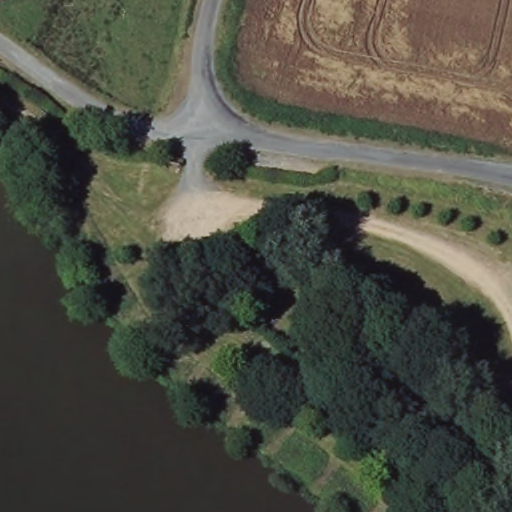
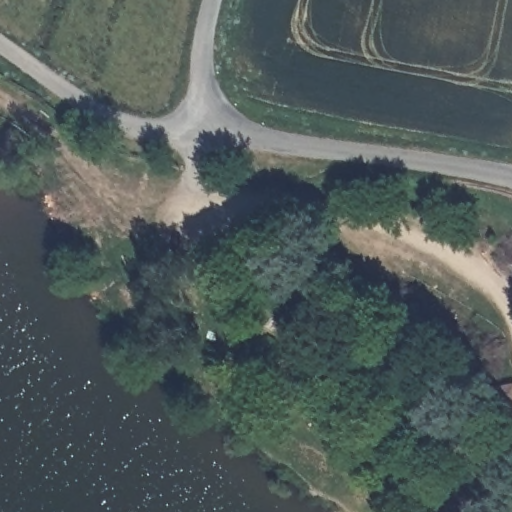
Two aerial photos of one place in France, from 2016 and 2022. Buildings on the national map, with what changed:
unchanged [(512,386),(512,412),(493,417),(487,392),(512,386)]

